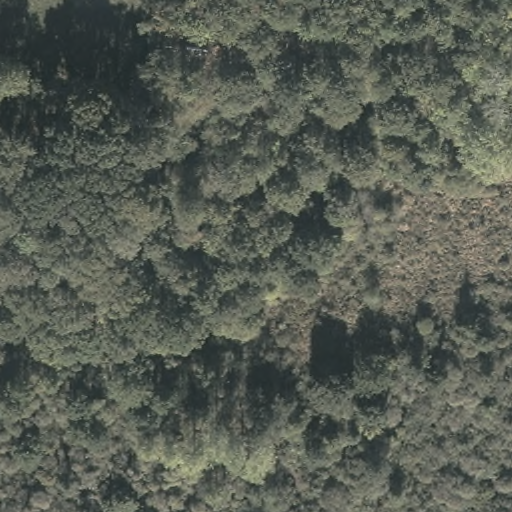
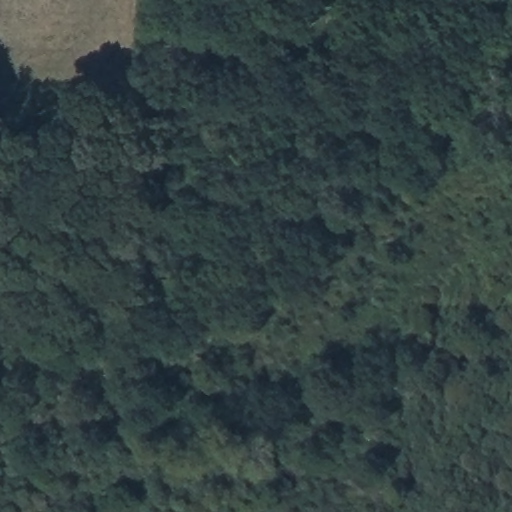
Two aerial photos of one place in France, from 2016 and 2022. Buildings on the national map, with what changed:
unchanged [(153,66),(158,22),(208,25),(207,70),(153,66)]

